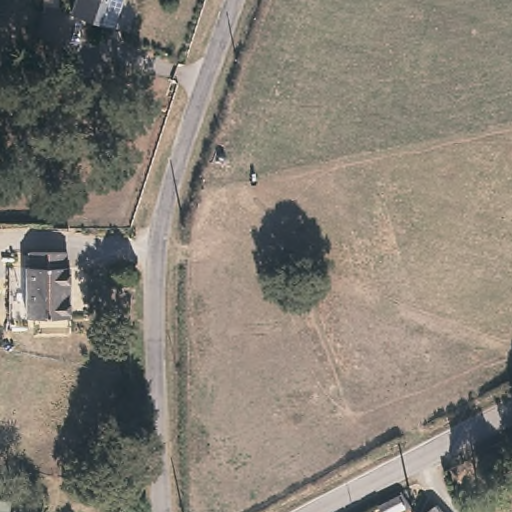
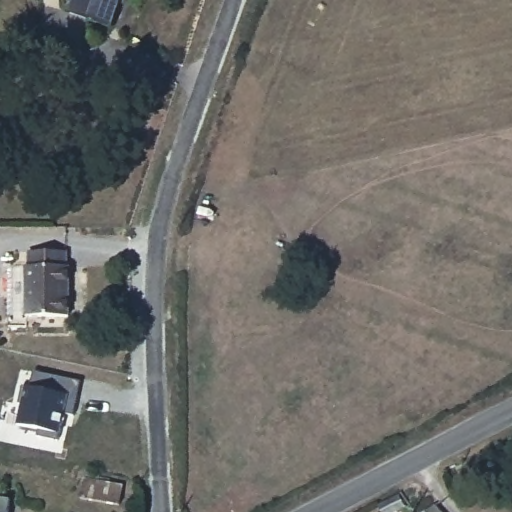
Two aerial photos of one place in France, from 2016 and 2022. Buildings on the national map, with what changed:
unchanged [(111,27),(69,14),(74,0),(120,0),(111,27)]
unchanged [(64,254),(64,270),(67,270),(66,321),(25,321),(25,269),(29,269),(29,254),(64,254)]
new [(27,386),(32,388),(34,371),(81,381),(75,415),(65,412),(60,434),(59,439),(37,435),(41,429),(19,424),(27,386)]
unchanged [(108,471),(109,496),(64,497),(63,472),(108,471)]
unchanged [(9,500),(8,512),(0,512),(0,499),(9,500)]
unchanged [(421,512),(430,502),(440,512),(421,512)]

